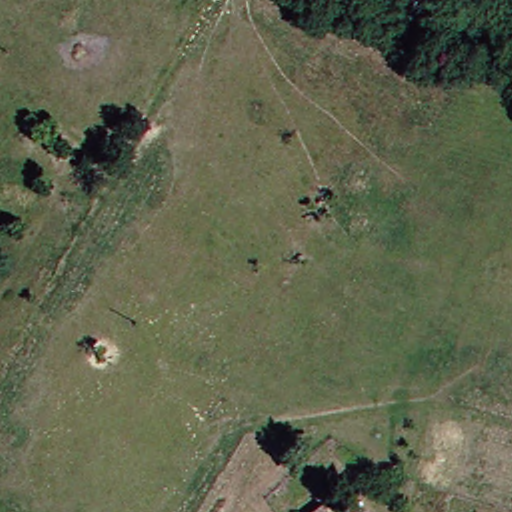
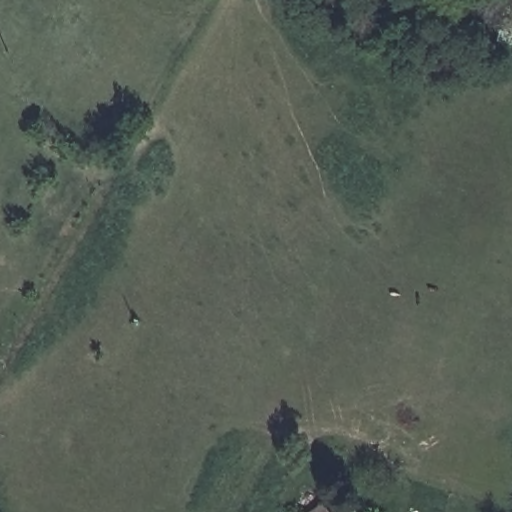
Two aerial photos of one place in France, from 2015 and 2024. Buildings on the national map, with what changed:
unchanged [(321,505),(326,512),(309,512),(321,505)]

